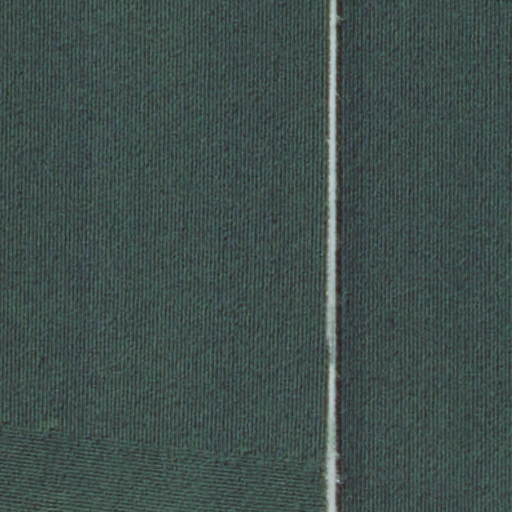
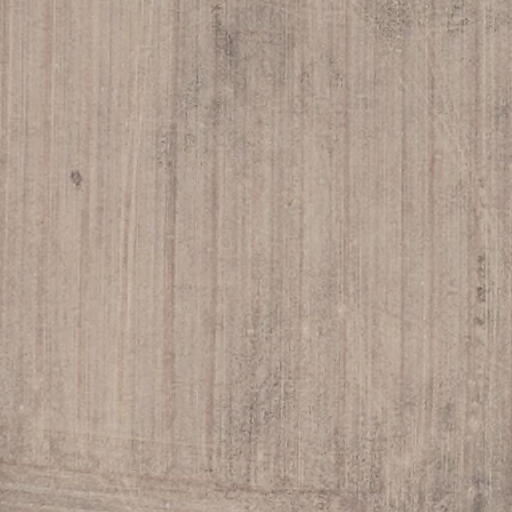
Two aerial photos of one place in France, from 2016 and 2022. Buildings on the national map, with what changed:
[]

